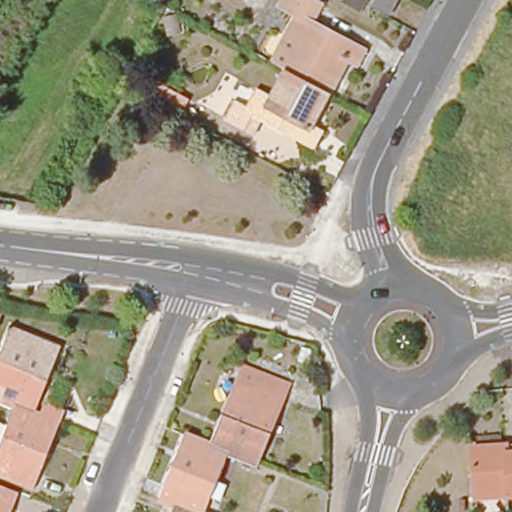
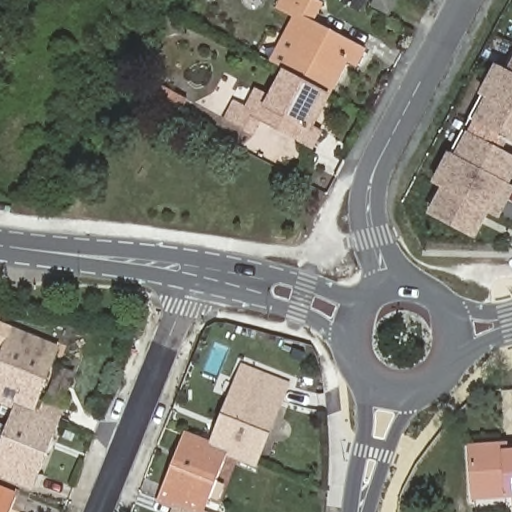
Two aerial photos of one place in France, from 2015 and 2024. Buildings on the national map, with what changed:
unchanged [(294,0),(302,0),(323,11),(315,25),(367,54),(360,69),(350,64),(337,86),(331,84),(326,94),(290,74),(277,68),(301,20),(288,13),(294,0)]
unchanged [(370,6),(374,0),(398,0),(390,16),(370,6)]
new [(500,219),(490,214),(475,239),(451,227),(426,214),(440,188),(431,182),(447,151),(451,153),(481,96),(478,94),(495,63),(507,69),(512,60),(512,143),(508,140),(503,150),(512,155),(512,195),(500,219)]
unchanged [(326,94),(321,104),(326,107),(313,130),(324,136),(317,149),(266,123),(258,138),(231,124),(240,107),(251,113),(261,95),(275,103),(290,74),(326,94)]
new [(156,83),(186,99),(180,113),(149,97),(156,83)]
unchanged [(58,347),(32,412),(22,408),(17,406),(0,399),(0,361),(13,329),(58,347)]
unchanged [(255,463),(231,453),(226,451),(224,450),(211,446),(243,366),(286,383),(255,463)]
unchanged [(0,449),(17,406),(22,408),(32,412),(40,415),(45,404),(62,411),(58,422),(57,422),(31,487),(0,474),(0,449)]
unchanged [(202,512),(193,512),(177,506),(161,499),(186,436),(207,444),(211,446),(224,450),(226,451),(202,512)]
unchanged [(471,448),(505,445),(505,453),(512,452),(512,496),(508,497),(508,493),(474,495),(471,448)]
unchanged [(8,512),(0,512),(0,488),(15,494),(8,512)]
unchanged [(177,506),(193,512),(174,512),(177,506)]

